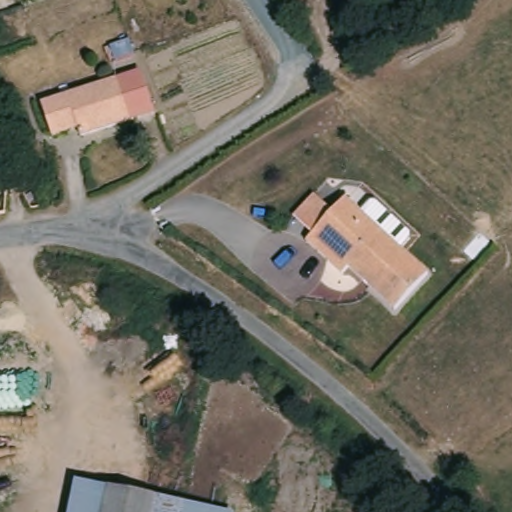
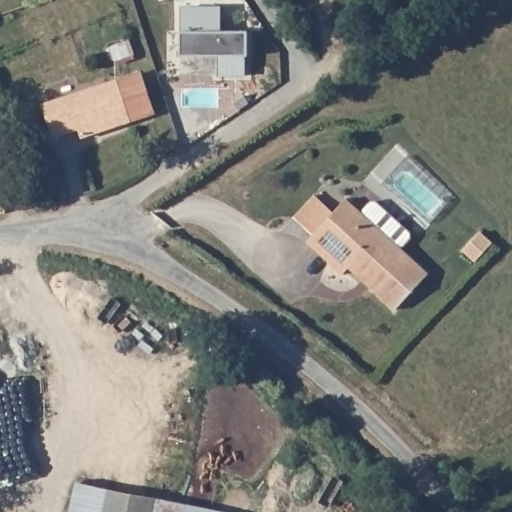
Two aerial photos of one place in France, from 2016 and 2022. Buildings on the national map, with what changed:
new [(180,32),(181,32),(181,7),(222,7),(221,31),(247,31),(247,56),(247,75),(218,76),(218,56),(180,57),(180,32)]
unchanged [(155,111),(86,135),(81,124),(71,127),(71,131),(57,135),(47,106),(141,73),(155,111)]
unchanged [(346,200),(428,275),(396,312),(349,269),(342,276),(307,244),(346,200)]
unchanged [(119,512),(69,512),(74,484),(123,494),(119,512)]
unchanged [(119,512),(123,494),(124,493),(176,503),(174,512),(119,512)]
unchanged [(174,512),(176,503),(219,512),(174,512)]

